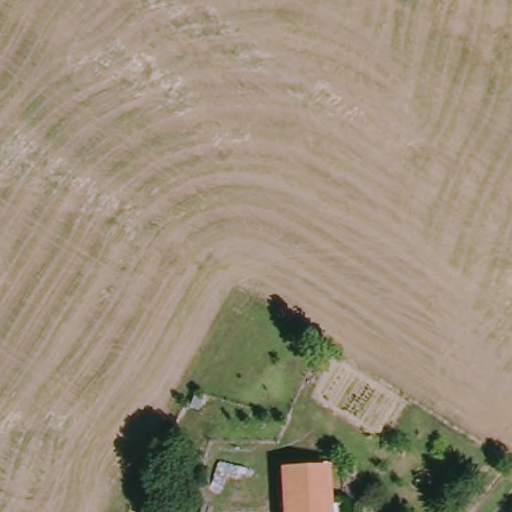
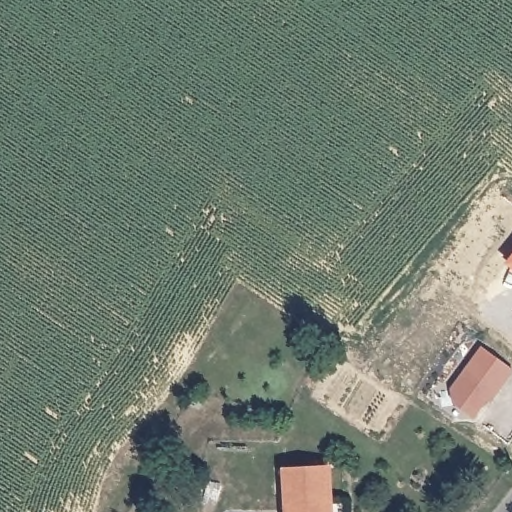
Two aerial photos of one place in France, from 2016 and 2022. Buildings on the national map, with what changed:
new [(475,417),(452,402),(451,388),(480,347),(512,370),(512,372),(491,401),(487,399),(475,417)]

